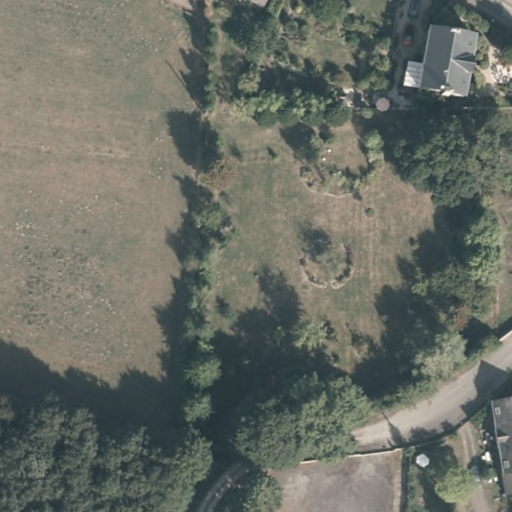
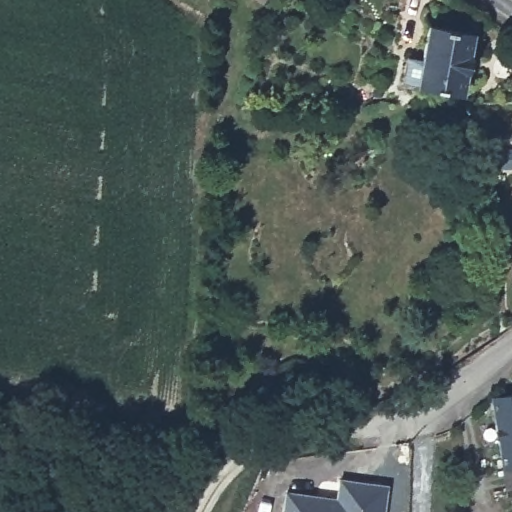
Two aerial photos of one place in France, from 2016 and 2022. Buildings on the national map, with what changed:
unchanged [(261,1),(258,0),(261,0),(261,1)]
unchanged [(421,66),(429,21),(473,30),(461,92),(411,83),(413,65),(421,66)]
unchanged [(495,395),(512,392),(512,464),(505,464),(495,395)]
new [(282,512),(285,491),(337,497),(340,479),(389,485),(386,512),(282,512)]

